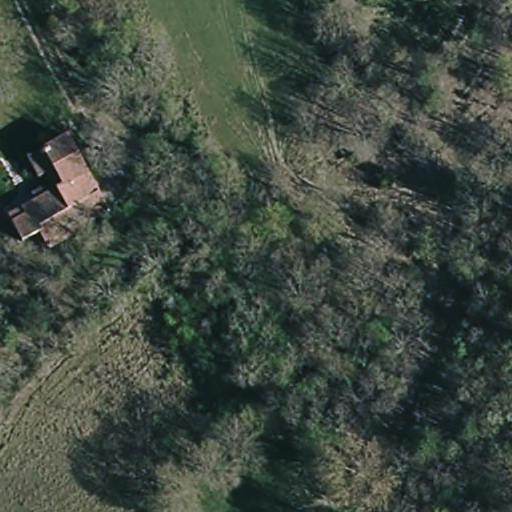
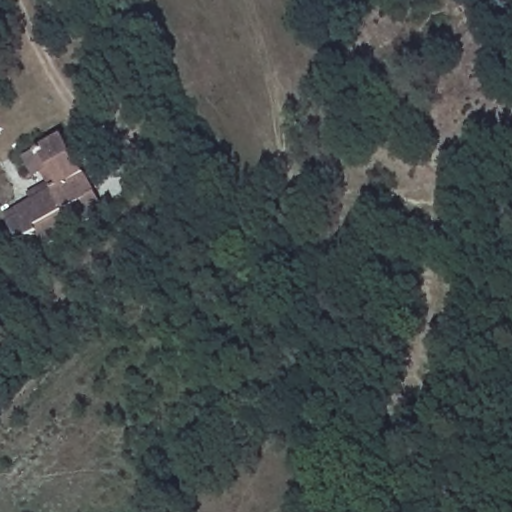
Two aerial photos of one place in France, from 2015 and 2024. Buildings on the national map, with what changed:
unchanged [(70,234),(64,224),(18,249),(5,226),(40,209),(33,195),(56,184),(49,169),(38,175),(30,159),(68,140),(108,215),(70,234)]

